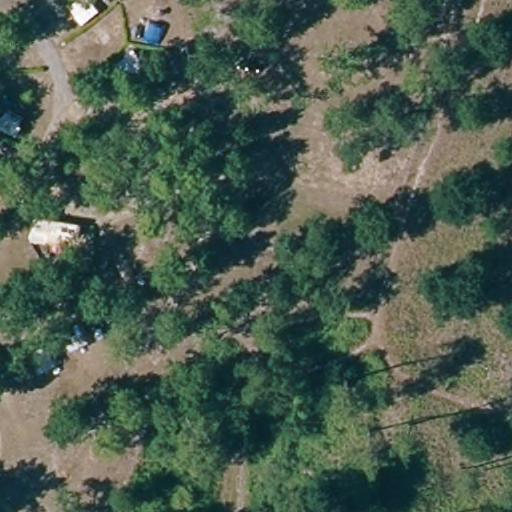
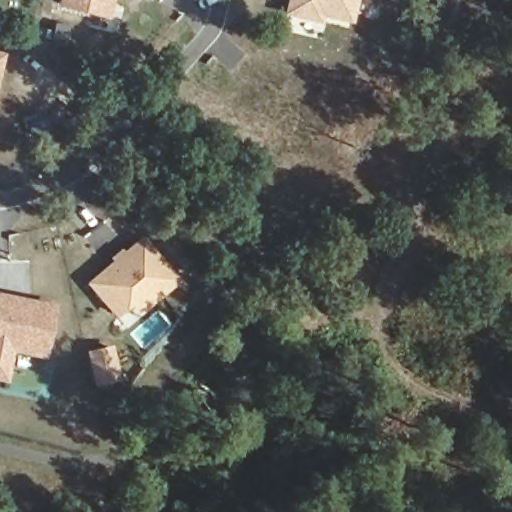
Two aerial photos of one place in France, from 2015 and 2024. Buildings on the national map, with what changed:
new [(59,6),(61,0),(112,0),(107,18),(59,6)]
new [(356,0),(351,21),(321,14),(319,21),(286,13),(290,0),(356,0)]
new [(2,57),(0,67),(0,56),(2,57)]
new [(130,305),(116,317),(90,286),(144,242),(178,283),(151,305),(138,316),(130,305)]
new [(52,308),(42,357),(9,350),(3,381),(0,380),(0,297),(52,308)]
new [(113,352),(117,367),(120,381),(95,387),(89,357),(104,354),(113,352)]

